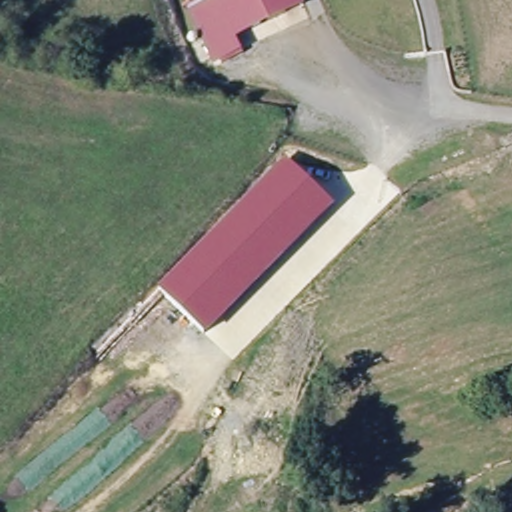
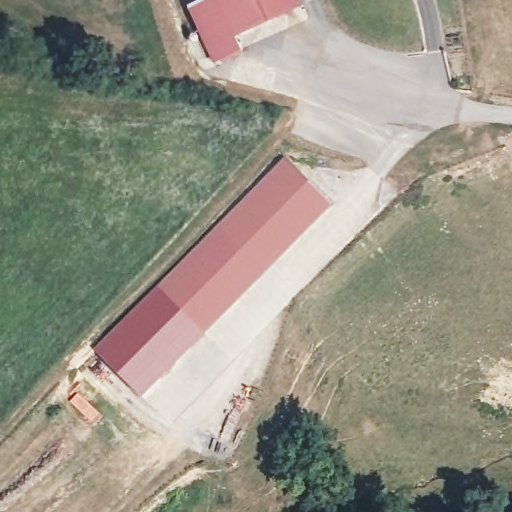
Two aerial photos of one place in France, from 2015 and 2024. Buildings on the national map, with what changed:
unchanged [(206,0),(306,0),(307,3),(236,34),(243,50),(215,62),(190,6),(206,0)]
unchanged [(285,159),(336,209),(204,334),(156,286),(285,159)]
new [(204,334),(144,399),(94,351),(156,286),(204,334)]

